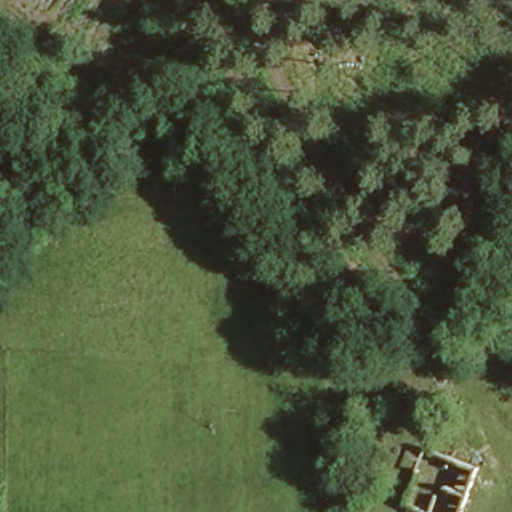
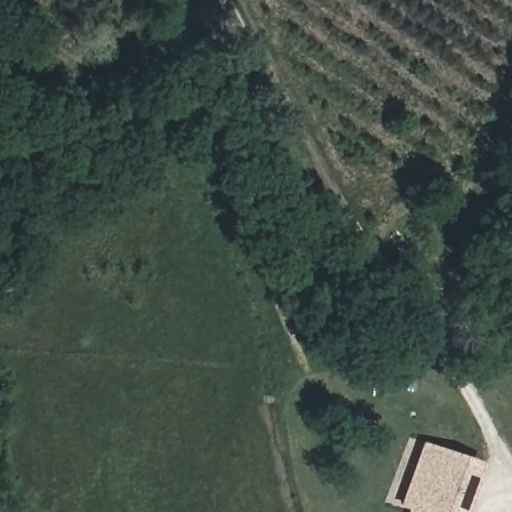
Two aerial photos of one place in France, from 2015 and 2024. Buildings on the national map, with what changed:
new [(408,512),(398,508),(421,445),(483,465),(468,512),(408,512)]

